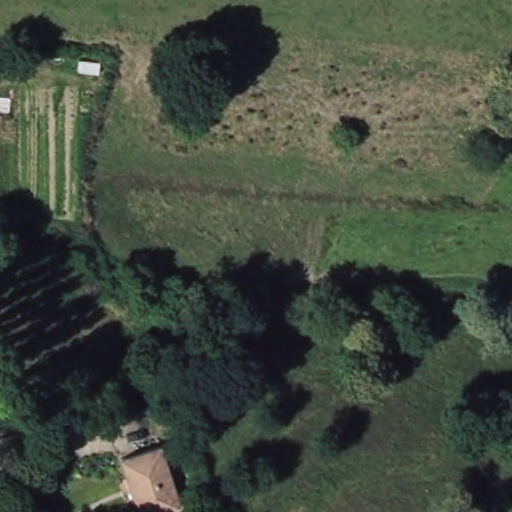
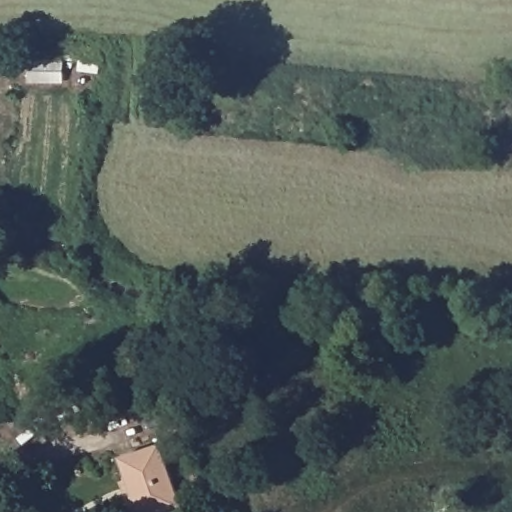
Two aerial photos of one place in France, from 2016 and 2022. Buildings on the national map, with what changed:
unchanged [(179,500),(153,512),(138,512),(115,457),(152,440),(179,500)]

